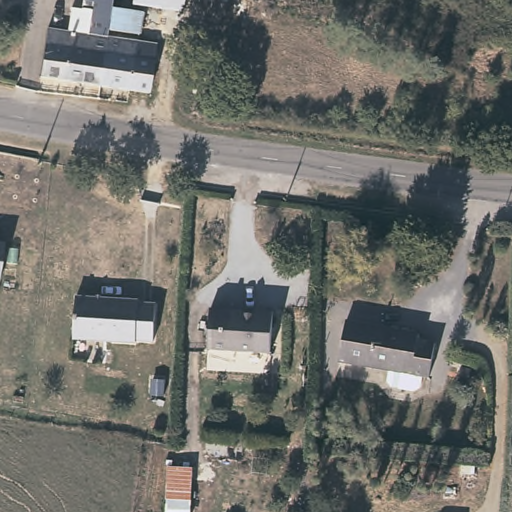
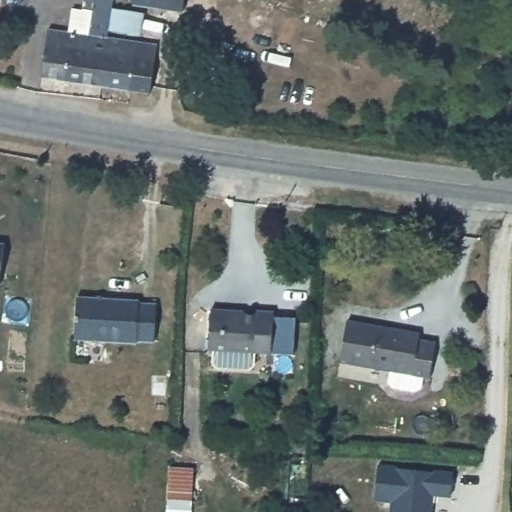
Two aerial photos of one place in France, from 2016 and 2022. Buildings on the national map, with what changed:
unchanged [(100,82),(44,72),(52,25),(72,29),(76,4),(86,6),(87,0),(114,0),(109,36),(101,82),(100,82)]
new [(184,12),(133,2),(133,0),(186,0),(184,12)]
unchanged [(109,36),(138,41),(130,87),(101,82),(109,36)]
new [(158,45),(155,61),(152,94),(128,90),(130,87),(138,41),(158,45)]
unchanged [(6,244),(0,271),(0,242),(6,244)]
unchanged [(142,302),(142,305),(159,306),(156,342),(140,341),(140,344),(76,340),(79,297),(142,302)]
unchanged [(238,309),(238,313),(259,315),(259,311),(276,313),(272,353),(211,347),(215,307),(238,309)]
unchanged [(420,331),(419,338),(437,340),(434,381),(412,379),(412,370),(344,365),(347,324),(420,331)]
unchanged [(198,467),(194,512),(165,512),(170,464),(198,467)]
new [(374,502),(377,465),(452,472),(450,497),(433,496),(431,512),(389,512),(390,503),(374,502)]

